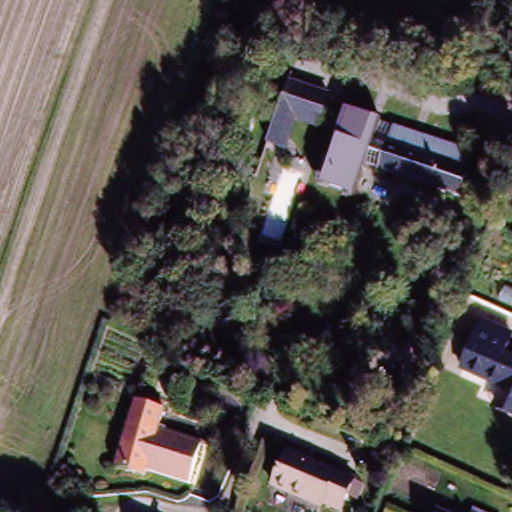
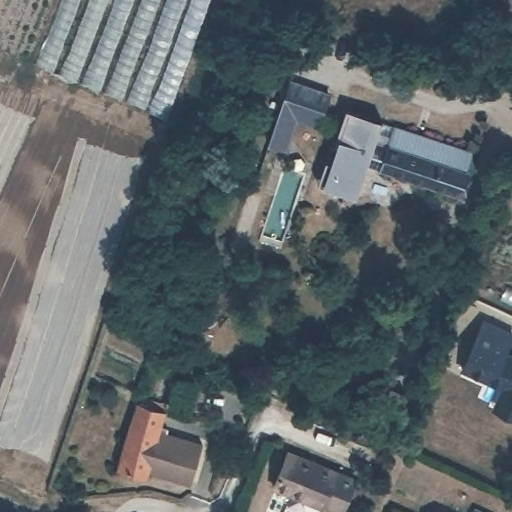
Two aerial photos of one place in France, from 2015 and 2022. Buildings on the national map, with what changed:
new [(38,72),(65,0),(214,0),(170,122),(38,72)]
unchanged [(332,93),(319,131),(298,124),(285,156),(259,149),(286,79),(332,93)]
unchanged [(400,124),(396,135),(380,131),(370,162),(356,202),(318,190),(345,109),(400,124)]
unchanged [(370,162),(380,131),(396,135),(400,124),(477,149),(462,192),(370,162)]
unchanged [(512,409),(497,402),(506,382),(465,364),(488,315),(512,326),(512,342),(510,346),(512,347),(512,409)]
unchanged [(378,419),(389,392),(402,398),(391,425),(378,419)]
unchanged [(189,478),(147,466),(145,474),(119,466),(137,402),(163,409),(159,424),(168,426),(166,432),(199,442),(189,478)]
unchanged [(359,495),(347,491),(341,509),(321,501),(321,504),(274,484),(287,449),(353,476),(364,479),(359,495)]
unchanged [(442,510),(446,512),(442,512),(442,510)]
unchanged [(480,510),(484,512),(479,512),(480,510)]

